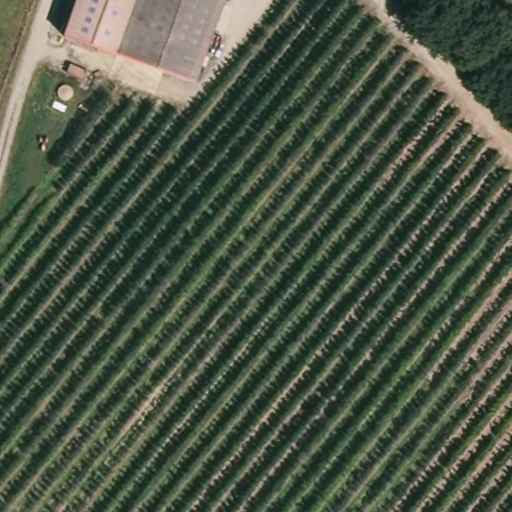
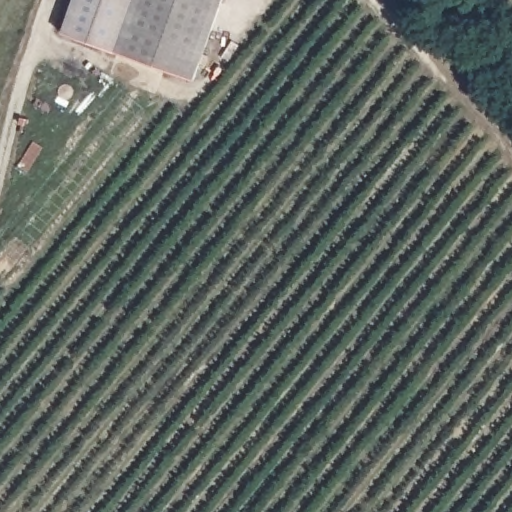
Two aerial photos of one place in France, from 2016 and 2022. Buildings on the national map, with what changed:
unchanged [(193,81),(63,34),(74,0),(223,0),(193,81)]

